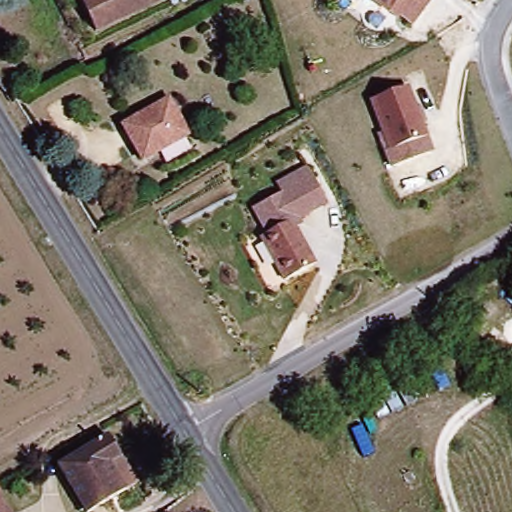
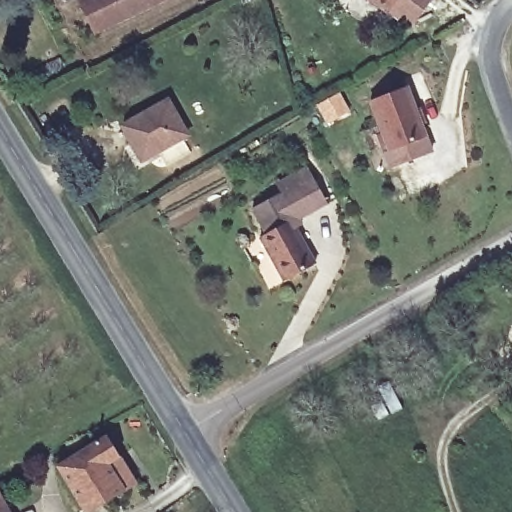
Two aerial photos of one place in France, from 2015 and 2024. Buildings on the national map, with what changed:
unchanged [(84,1),(87,0),(169,0),(100,34),(84,1)]
unchanged [(397,17),(369,0),(410,0),(397,17)]
unchanged [(415,88),(438,150),(391,168),(366,102),(415,88)]
unchanged [(127,127),(172,101),(191,134),(147,160),(127,127)]
unchanged [(262,234),(250,207),(279,192),(275,183),(312,162),(330,202),(300,219),(325,263),(285,285),(257,236),(262,234)]
unchanged [(87,504),(62,463),(112,434),(135,475),(87,504)]
unchanged [(0,512),(0,491),(14,512),(0,512)]

